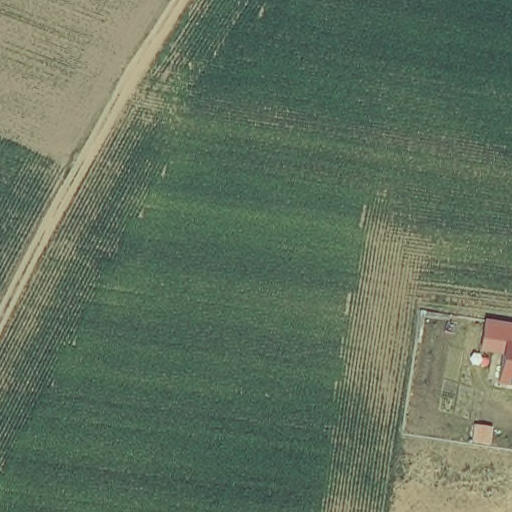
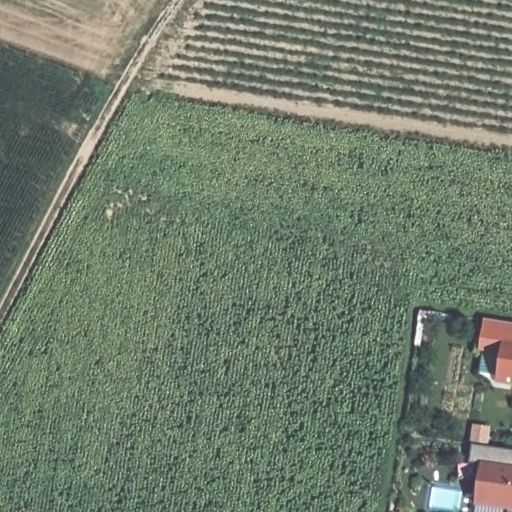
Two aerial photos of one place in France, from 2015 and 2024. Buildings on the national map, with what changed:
unchanged [(512,387),(499,384),(503,356),(481,352),(486,319),(512,323),(512,387)]
new [(512,512),(509,512),(509,509),(477,505),(479,484),(474,483),(477,466),(469,464),(473,446),(512,451),(512,512)]

